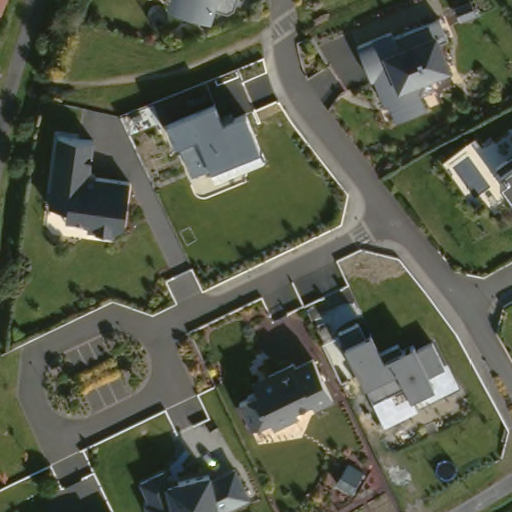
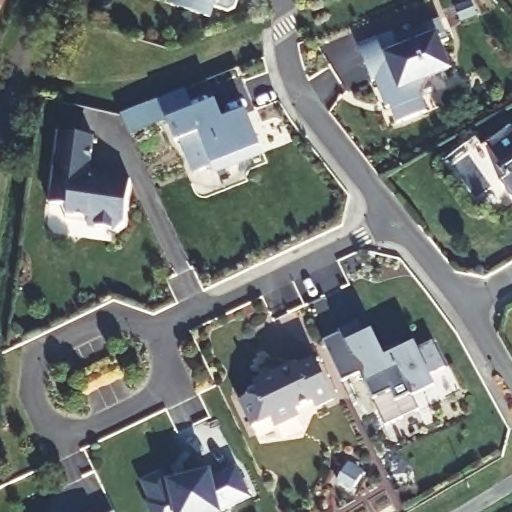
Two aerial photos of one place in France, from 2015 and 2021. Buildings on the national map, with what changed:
unchanged [(0,0),(5,0),(0,11),(0,0)]
unchanged [(232,13),(216,11),(212,21),(167,8),(169,0),(236,0),(232,13)]
unchanged [(393,33),(395,35),(440,19),(450,41),(440,44),(450,74),(430,82),(431,93),(421,99),(425,112),(397,122),(394,111),(390,113),(375,82),(372,84),(357,45),(393,33)]
unchanged [(215,102),(224,121),(246,112),(263,157),(215,176),(210,167),(194,173),(181,141),(176,143),(167,122),(215,102)]
unchanged [(89,229),(90,220),(67,218),(68,209),(50,206),(59,135),(94,140),(89,176),(130,181),(125,225),(115,232),(89,229)]
unchanged [(503,189),(509,185),(500,172),(512,163),(512,202),(503,189)]
unchanged [(408,398),(400,380),(370,394),(346,342),(339,329),(360,320),(367,332),(372,330),(380,345),(400,338),(405,348),(415,345),(430,340),(444,368),(427,373),(434,386),(408,398)]
unchanged [(298,412),(290,416),(293,422),(277,430),(273,422),(255,430),(242,404),(261,396),(258,389),(273,382),(271,377),(297,365),(299,369),(316,361),(336,402),(318,411),(301,418),(298,412)]
unchanged [(169,479),(212,471),(235,466),(246,494),(216,507),(217,512),(147,512),(143,504),(148,501),(139,480),(165,469),(169,479)]

